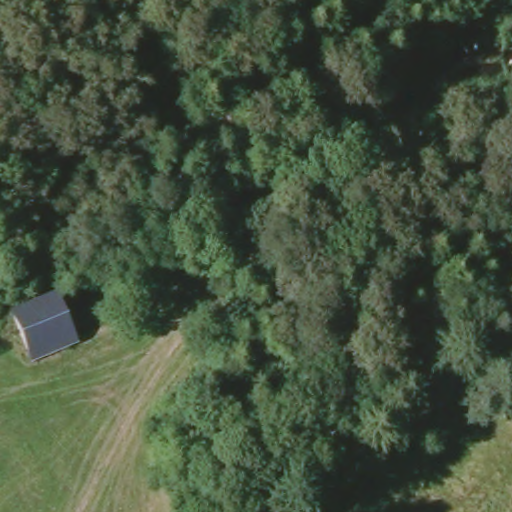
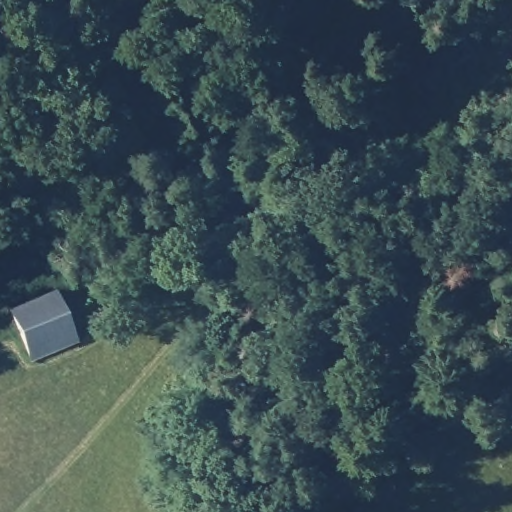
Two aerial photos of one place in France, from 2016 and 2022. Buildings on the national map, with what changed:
unchanged [(72,338),(26,357),(10,314),(56,295),(72,338)]

